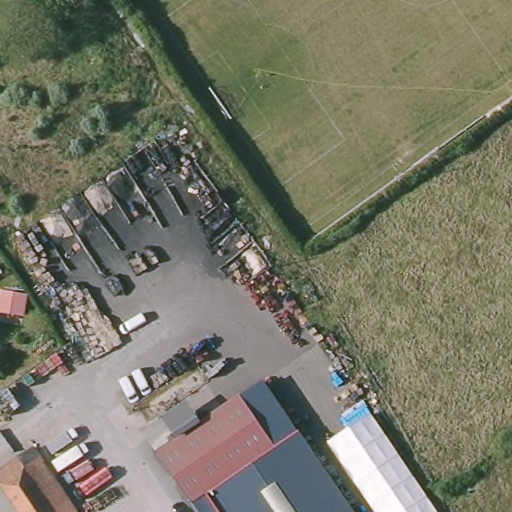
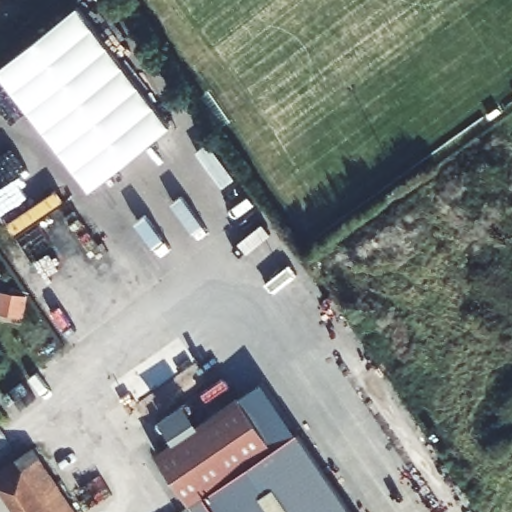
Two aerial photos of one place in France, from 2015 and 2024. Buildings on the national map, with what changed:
new [(172,126),(91,191),(0,74),(0,67),(79,5),(172,126)]
new [(236,178),(223,187),(197,151),(210,142),(236,178)]
unchanged [(264,382),(299,432),(353,512),(196,512),(191,505),(274,447),(240,397),(264,382)]
unchanged [(157,455),(162,451),(240,397),(274,447),(191,505),(157,455)]
unchanged [(176,441),(163,416),(189,401),(201,425),(176,441)]
unchanged [(31,447),(73,512),(48,512),(14,458),(31,447)]
unchanged [(14,458),(48,512),(12,512),(0,494),(0,468),(14,458)]

